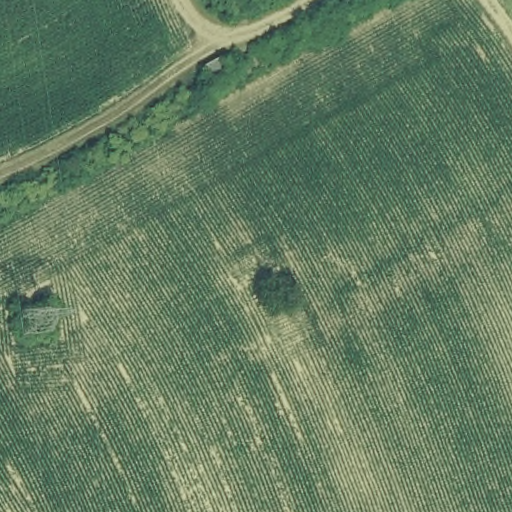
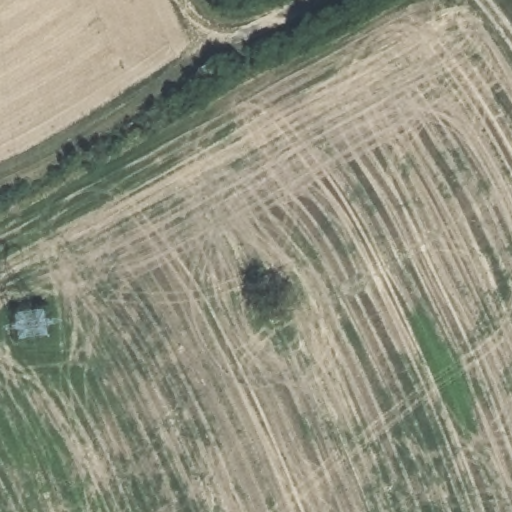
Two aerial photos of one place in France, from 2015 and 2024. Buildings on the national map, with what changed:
unchanged [(217,61),(225,79),(203,87),(202,70),(217,61)]

